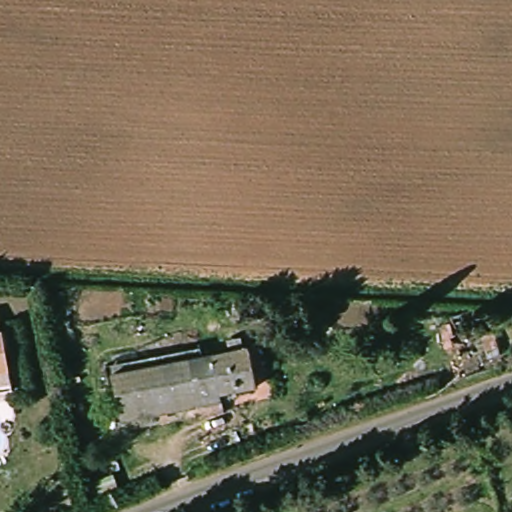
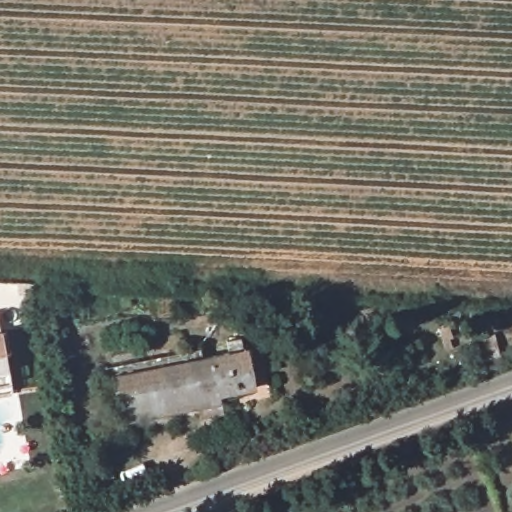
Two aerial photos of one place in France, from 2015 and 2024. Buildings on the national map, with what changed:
unchanged [(0,315),(11,387),(0,389),(0,315)]
unchanged [(118,418),(113,373),(249,356),(254,398),(118,418)]

